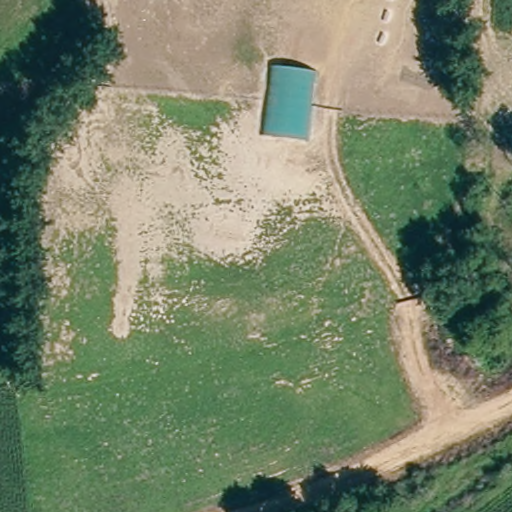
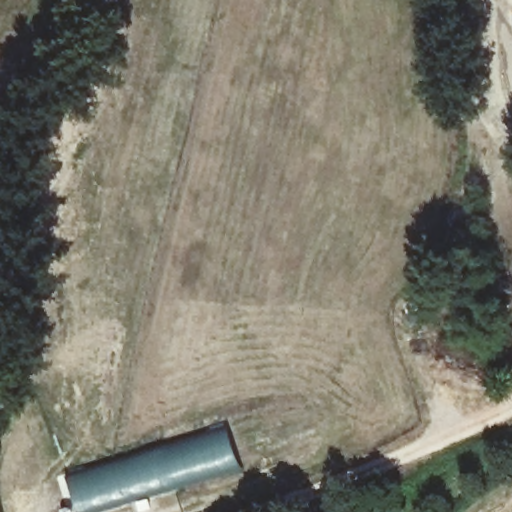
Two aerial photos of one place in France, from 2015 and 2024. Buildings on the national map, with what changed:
demolished [(306,138),(259,131),(271,63),(314,70),(306,138)]
new [(93,512),(79,512),(66,473),(161,443),(176,487),(93,512)]

